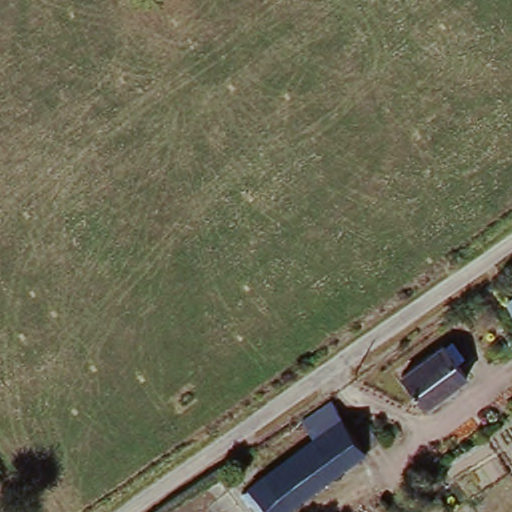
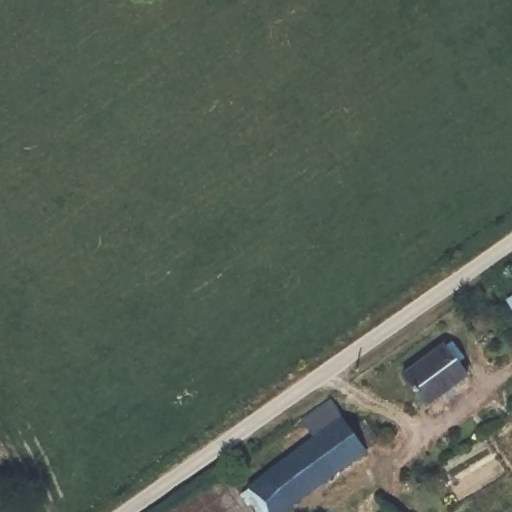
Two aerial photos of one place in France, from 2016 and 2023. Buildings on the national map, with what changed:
unchanged [(449,352),(460,347),(471,366),(460,372),(468,386),(422,412),(403,376),(448,351),(449,352)]
unchanged [(334,407),(356,437),(370,427),(384,448),(297,512),(265,512),(253,495),(319,447),(306,427),(334,407)]

